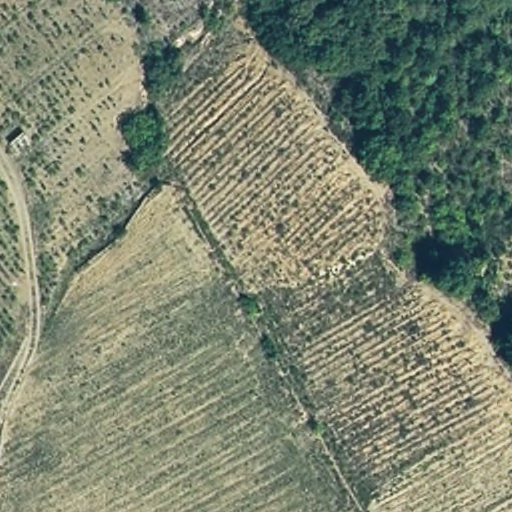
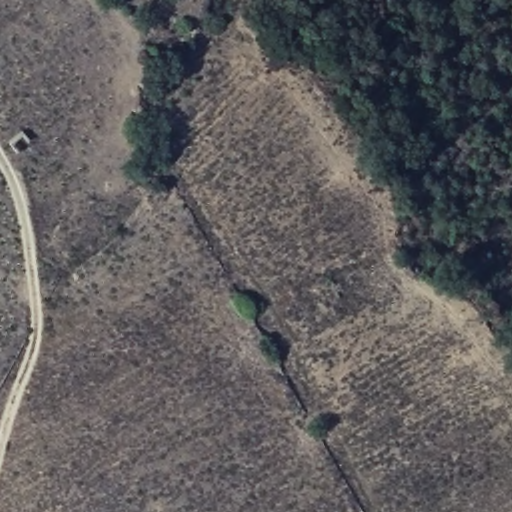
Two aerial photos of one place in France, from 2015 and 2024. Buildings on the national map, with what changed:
unchanged [(22,126),(31,139),(24,150),(9,141),(22,126)]

